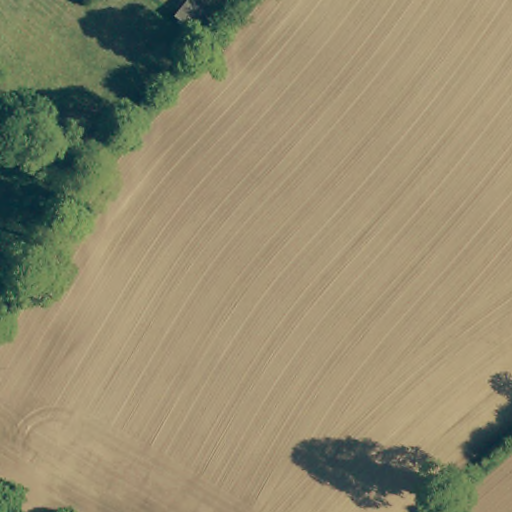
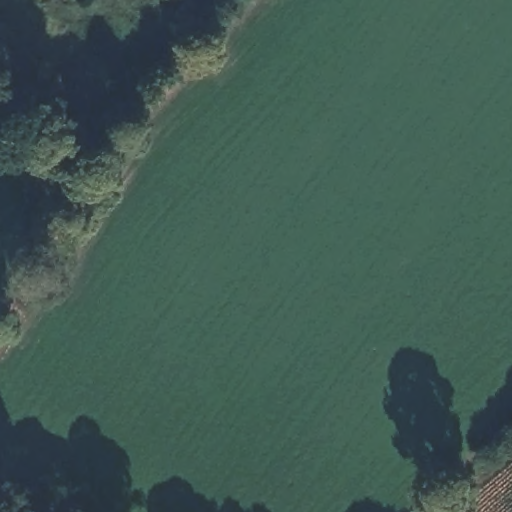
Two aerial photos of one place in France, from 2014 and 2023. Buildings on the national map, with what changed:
unchanged [(173,17),(184,5),(212,28),(199,42),(173,17)]

